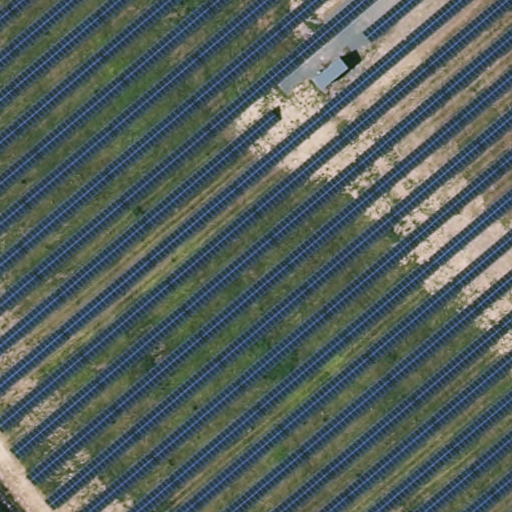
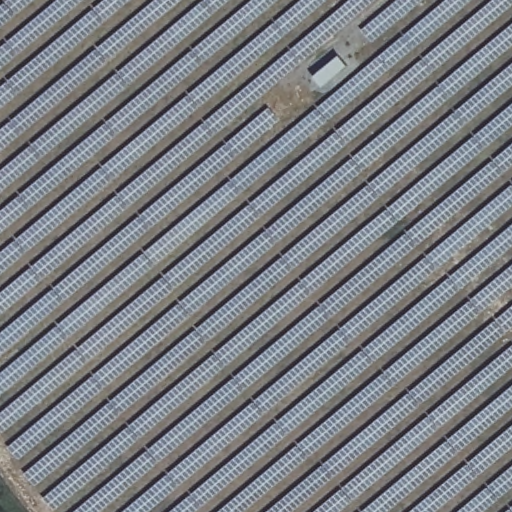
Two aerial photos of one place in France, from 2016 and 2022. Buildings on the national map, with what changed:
unchanged [(323,87),(314,77),(339,55),(348,67),(323,87)]

